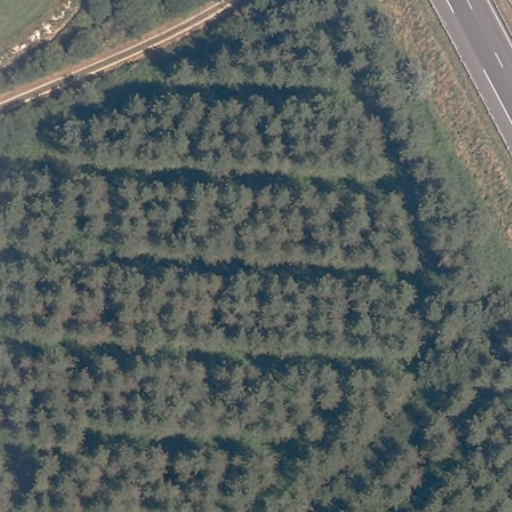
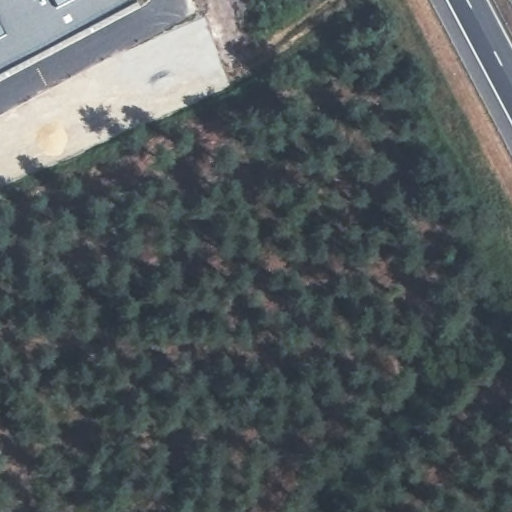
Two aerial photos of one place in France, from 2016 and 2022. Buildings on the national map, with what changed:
new [(137,6),(0,78),(0,0),(133,0),(137,6)]

